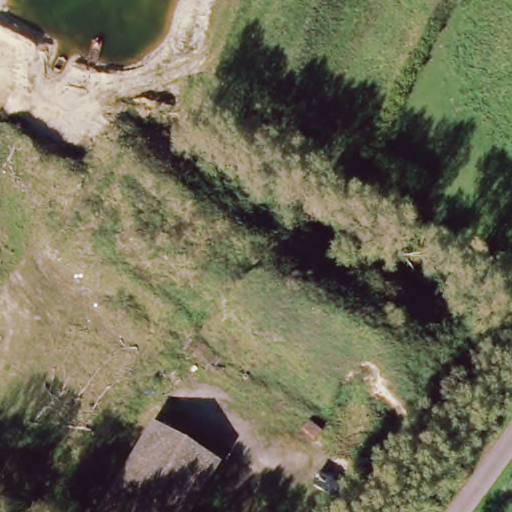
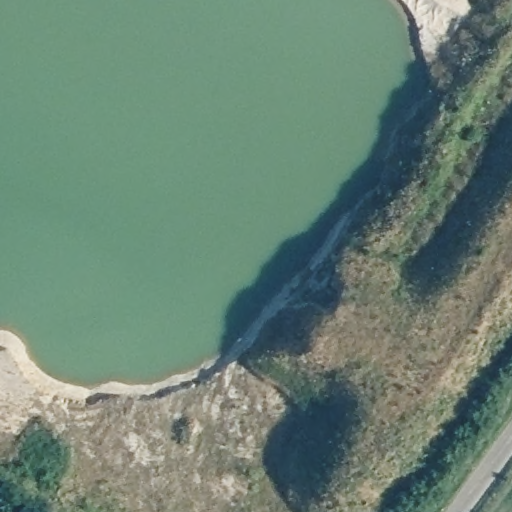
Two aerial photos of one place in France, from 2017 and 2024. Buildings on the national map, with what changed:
demolished [(189,512),(98,512),(154,421),(220,462),(189,512)]

